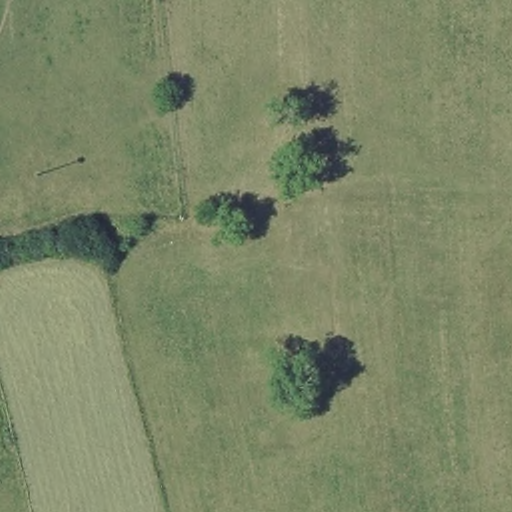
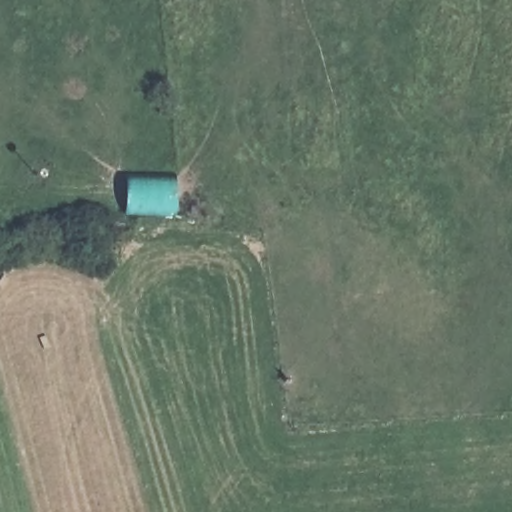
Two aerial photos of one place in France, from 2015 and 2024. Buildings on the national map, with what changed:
new [(126,176),(177,179),(176,216),(124,214),(126,176)]

